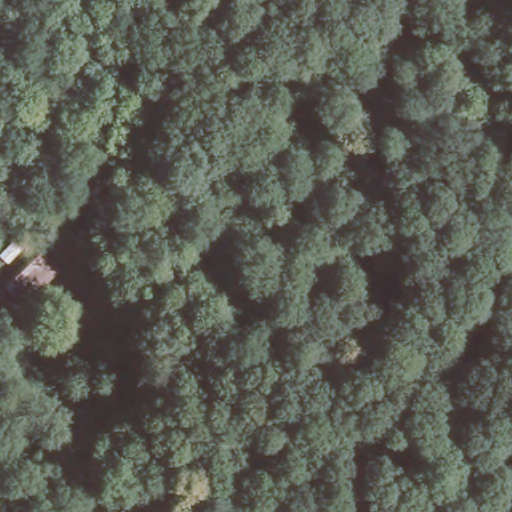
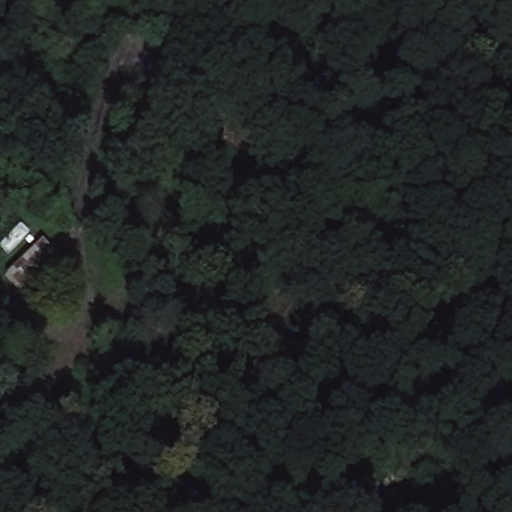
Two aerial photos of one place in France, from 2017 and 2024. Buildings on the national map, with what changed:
unchanged [(9,260),(0,253),(0,247),(19,228),(30,239),(9,260)]
unchanged [(57,265),(24,298),(5,281),(38,248),(57,265)]

